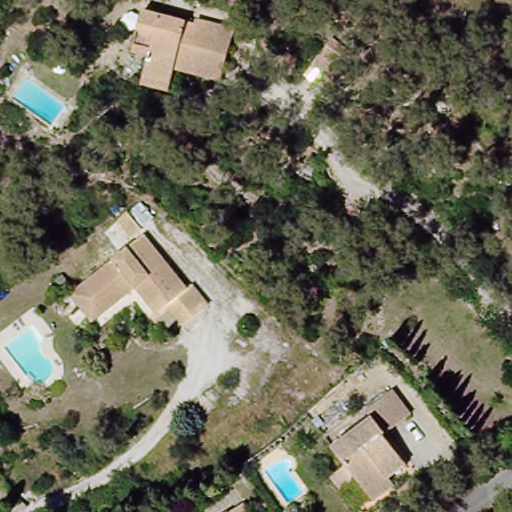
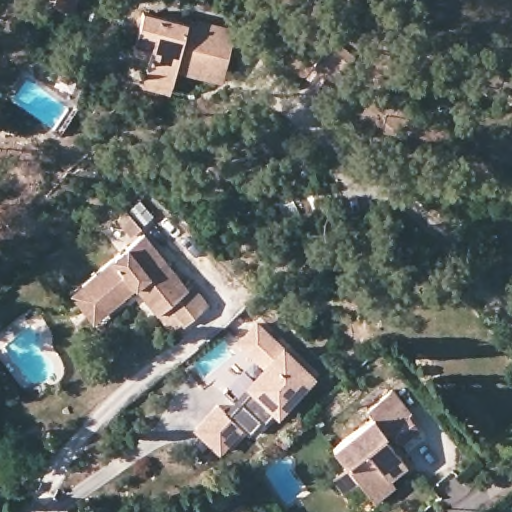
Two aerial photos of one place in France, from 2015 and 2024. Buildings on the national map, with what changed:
unchanged [(142,80),(144,71),(150,47),(135,44),(145,6),(195,19),(196,15),(235,24),(225,63),(222,76),(175,65),(172,77),(169,86),(142,80)]
unchanged [(305,76),(331,44),(350,60),(324,91),(305,76)]
unchanged [(66,293),(78,285),(139,234),(182,288),(188,283),(199,296),(194,299),(199,308),(183,319),(167,300),(151,312),(130,287),(117,297),(98,310),(87,320),(66,293)]
new [(224,411),(246,385),(265,365),(238,343),(257,321),(283,345),(318,376),(278,416),(274,412),(264,424),(261,421),(249,435),(244,429),(221,454),(193,429),(217,403),(224,411)]
unchanged [(333,447),(371,417),(366,409),(392,389),(410,414),(384,434),(400,456),(407,464),(387,479),(393,486),(374,500),(358,480),(344,492),(332,477),(346,465),(333,447)]
unchanged [(245,512),(238,512),(243,508),(245,512)]

